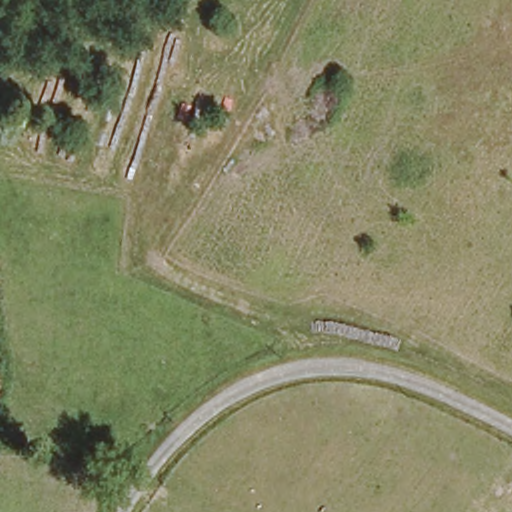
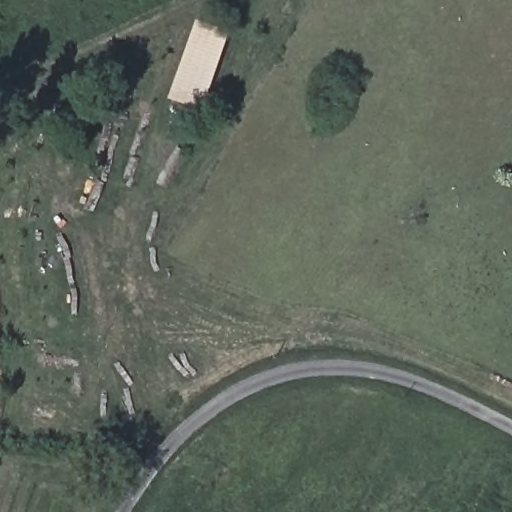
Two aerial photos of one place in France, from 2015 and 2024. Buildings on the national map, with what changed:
new [(203,111),(170,99),(197,26),(230,38),(203,111)]

